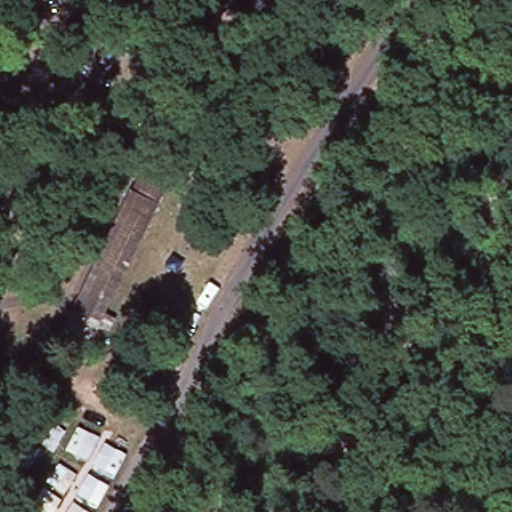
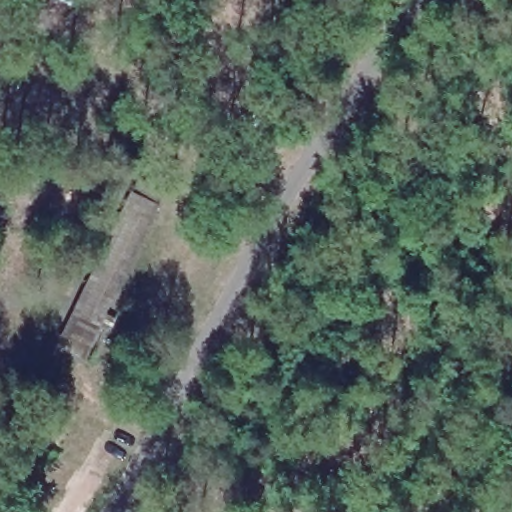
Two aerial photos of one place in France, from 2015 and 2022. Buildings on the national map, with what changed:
unchanged [(52,360),(68,332),(64,330),(125,207),(131,194),(154,205),(147,219),(94,326),(108,334),(102,345),(97,343),(89,338),(87,341),(72,370),(52,360)]

